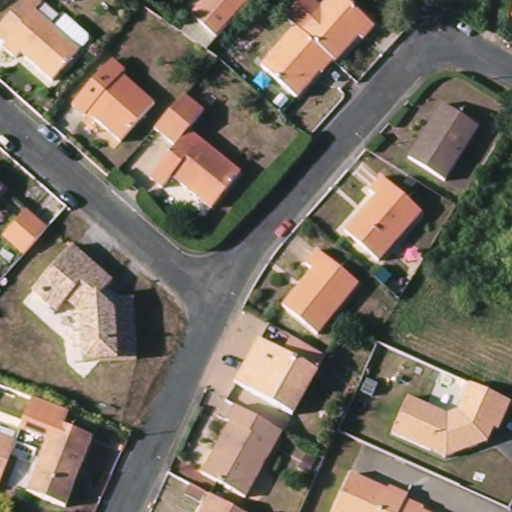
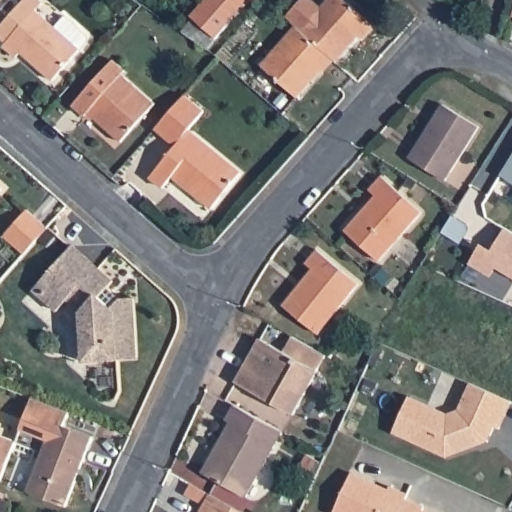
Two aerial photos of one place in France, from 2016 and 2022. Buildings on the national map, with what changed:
unchanged [(19,57),(6,46),(8,43),(0,36),(0,32),(28,0),(40,0),(44,4),(36,11),(56,29),(66,17),(89,36),(89,41),(81,50),(55,79),(22,53),(19,57)]
unchanged [(207,0),(250,0),(216,39),(192,16),(207,0)]
unchanged [(311,0),(324,10),(334,0),(339,0),(375,31),(363,44),(359,41),(335,66),(333,65),(295,31),(285,22),(299,6),(306,0),(311,0)]
unchanged [(508,21),(512,9),(512,22),(508,21)]
unchanged [(323,76),(320,76),(297,102),(260,70),(295,31),(333,65),(323,76)]
unchanged [(115,60),(128,71),(125,76),(157,105),(124,140),(91,113),(89,114),(76,104),(115,60)]
unchanged [(208,114),(191,132),(242,179),(215,210),(179,179),(168,190),(152,177),(180,145),(160,128),(188,96),(208,114)]
unchanged [(443,109),(480,131),(445,185),(410,161),(443,109)]
new [(501,174),(512,157),(512,181),(501,174)]
unchanged [(381,260),(347,229),(379,194),(372,189),(385,177),(425,213),(381,260)]
unchanged [(0,187),(4,190),(0,195),(0,187)]
unchanged [(5,238),(29,212),(49,229),(36,244),(25,256),(5,238)]
new [(481,244),(491,250),(505,229),(512,233),(512,276),(495,269),(490,277),(469,264),(481,244)]
unchanged [(72,364),(70,329),(69,314),(77,314),(64,301),(58,307),(54,313),(30,292),(34,286),(69,247),(103,277),(110,283),(104,289),(116,299),(130,299),(134,359),(97,362),(81,363),(72,364)]
unchanged [(317,338),(283,308),(314,274),(306,268),(320,253),(361,289),(317,338)]
unchanged [(235,379),(259,342),(281,355),(291,337),(301,342),(323,354),(290,412),(235,379)]
unchanged [(409,396),(445,413),(458,409),(467,383),(510,403),(485,443),(445,456),(392,431),(409,396)]
unchanged [(66,511),(29,497),(42,461),(14,451),(16,446),(19,439),(21,433),(32,402),(70,416),(64,431),(93,442),(66,511)]
unchanged [(244,501),(202,476),(213,454),(217,457),(234,428),(226,424),(235,410),(281,437),(244,501)]
unchanged [(14,451),(0,483),(0,432),(19,439),(14,451)]
unchanged [(356,473),(376,482),(374,486),(389,493),(392,486),(412,494),(410,498),(428,506),(425,512),(339,512),(338,512),(356,473)]
unchanged [(214,494),(218,496),(247,512),(204,512),(214,494)]

